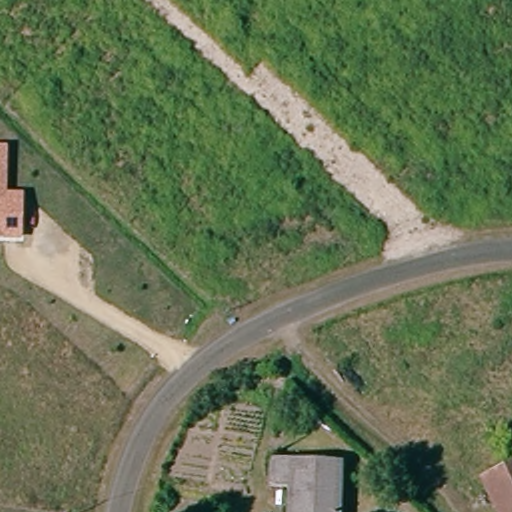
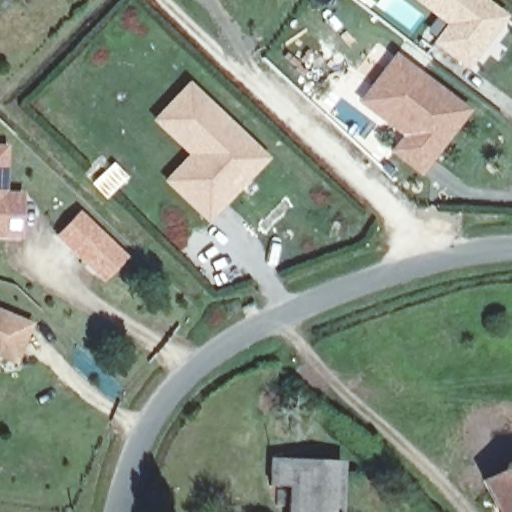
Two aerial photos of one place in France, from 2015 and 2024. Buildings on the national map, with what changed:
new [(468,70),(430,44),(444,24),(412,0),(488,0),(508,15),(468,70)]
new [(471,109),(419,176),(387,151),(401,135),(356,101),(394,51),(471,109)]
new [(270,159),(209,224),(161,182),(187,154),(150,121),(188,81),(270,159)]
unchanged [(0,239),(0,144),(8,144),(8,191),(24,192),(23,239),(0,239)]
new [(17,365),(0,358),(0,308),(34,322),(17,365)]
unchanged [(270,481),(272,456),(338,459),(338,512),(289,512),(289,481),(270,481)]
unchanged [(486,478),(512,465),(512,512),(503,512),(486,478)]

